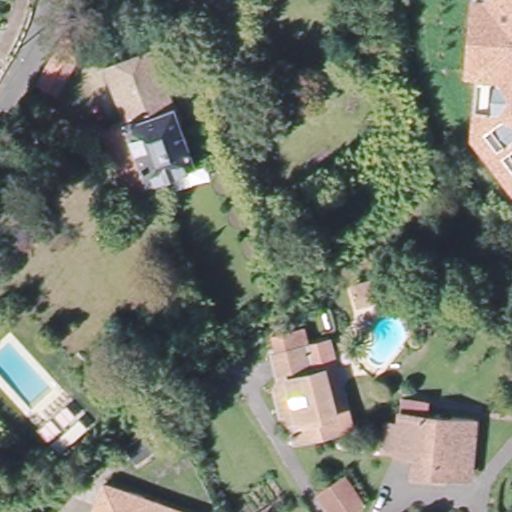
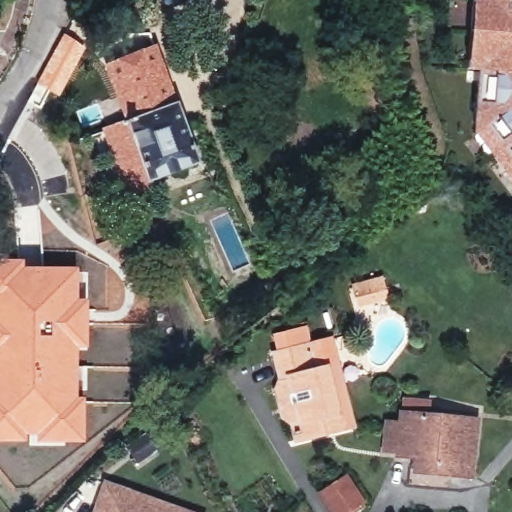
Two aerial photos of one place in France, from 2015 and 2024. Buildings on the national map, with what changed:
unchanged [(480,72),(469,71),(475,0),(512,0),(512,186),(472,134),(480,72)]
unchanged [(87,45),(67,92),(46,83),(67,36),(87,45)]
unchanged [(195,154),(150,171),(150,177),(131,184),(115,142),(125,138),(125,133),(131,129),(105,58),(155,40),(195,154)]
new [(23,259),(23,266),(78,267),(78,298),(87,298),(87,349),(78,350),(78,367),(86,367),(83,442),(31,443),(31,440),(0,441),(0,260),(23,259)]
unchanged [(380,293),(355,300),(351,284),(376,276),(380,293)]
unchanged [(279,390),(286,382),(280,358),(287,356),(282,338),(311,329),(316,346),(331,341),(339,365),(357,426),(304,441),(300,429),(291,424),(279,390)]
unchanged [(475,475),(421,471),(421,456),(402,455),(402,450),(391,449),(393,423),(405,424),(407,411),(409,396),(431,400),(429,415),(479,420),(475,475)]
unchanged [(352,512),(334,512),(324,495),(347,480),(363,504),(352,512)]
unchanged [(89,504),(96,483),(173,512),(86,512),(89,504)]

